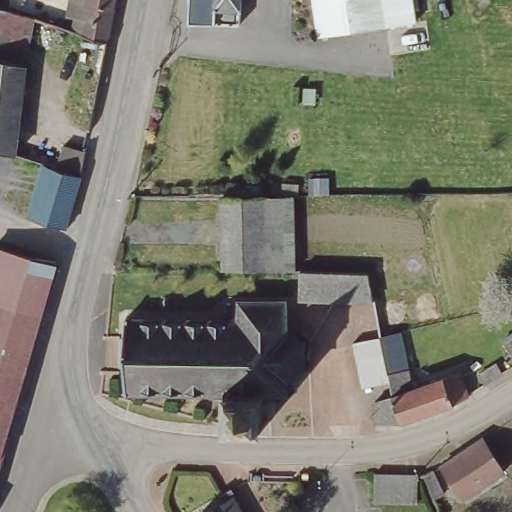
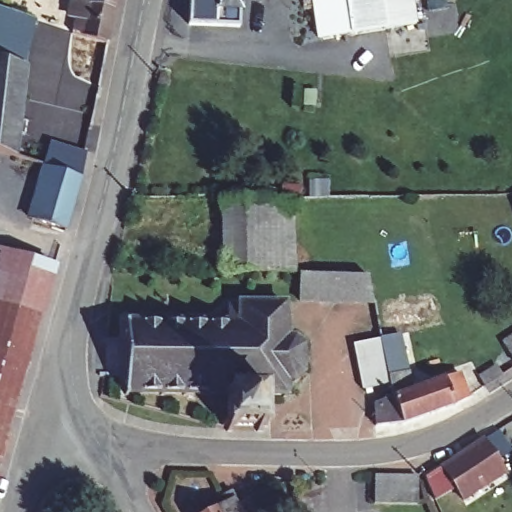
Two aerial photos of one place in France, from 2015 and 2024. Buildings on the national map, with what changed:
unchanged [(88,9),(60,2),(60,0),(117,0),(108,49),(82,41),(88,9)]
unchanged [(245,35),(194,34),(196,0),(247,0),(245,35)]
unchanged [(390,30),(355,36),(325,41),(317,0),(416,0),(420,25),(390,30)]
unchanged [(15,157),(0,152),(0,9),(32,20),(15,157)]
unchanged [(46,166),(58,170),(65,146),(86,151),(81,177),(65,230),(30,219),(46,166)]
unchanged [(305,181),(325,181),(325,200),(305,200),(305,181)]
unchanged [(283,275),(280,275),(236,274),(232,274),(220,273),(222,201),(295,200),(295,276),(283,275)]
unchanged [(60,264),(27,374),(17,411),(0,406),(0,286),(11,248),(60,264)]
unchanged [(345,306),(309,306),(300,306),(300,304),(300,276),(367,278),(374,307),(345,306)]
unchanged [(135,323),(135,326),(143,327),(143,323),(147,323),(147,327),(164,327),(164,323),(170,323),(169,327),(186,327),(186,323),(191,323),(191,327),(210,327),(210,323),(215,323),(215,327),(233,327),(233,313),(246,313),(246,308),(287,308),(288,308),(288,345),(294,345),(296,342),(300,344),(298,346),(304,349),(307,347),(310,351),(306,353),(306,375),(309,379),(305,382),(301,378),(300,380),(300,385),(294,385),(294,381),(288,381),(287,400),(282,400),(282,397),(270,397),(225,397),(215,397),(215,400),(210,400),(210,397),(191,396),(191,400),(185,400),(186,396),(166,396),(166,400),(161,400),(161,396),(147,396),(147,400),(142,399),(142,396),(135,396),(135,399),(130,399),(130,323),(135,323)]
unchanged [(510,329),(512,327),(512,332),(510,329)]
unchanged [(506,337),(512,332),(512,346),(506,337)]
unchanged [(398,351),(405,349),(414,379),(420,377),(421,385),(461,372),(470,399),(405,423),(392,381),(365,387),(362,373),(359,359),(355,343),(382,337),(393,334),(398,351)]
unchanged [(512,353),(512,357),(510,354),(512,353)]
unchanged [(475,381),(494,370),(500,381),(482,392),(475,381)]
unchanged [(403,423),(377,424),(377,402),(395,395),(403,423)]
unchanged [(230,422),(230,400),(225,400),(225,397),(270,397),(270,400),(266,400),(265,422),(269,422),(269,428),(266,427),(266,433),(260,433),(260,428),(242,428),(235,428),(235,432),(230,432),(230,427),(228,427),(225,427),(225,422),(230,422)]
unchanged [(0,467),(0,406),(17,411),(0,467)]
unchanged [(506,475),(466,500),(443,466),(484,440),(506,475)]
unchanged [(435,471),(443,493),(435,495),(428,475),(435,471)]
unchanged [(421,504),(406,503),(390,503),(378,503),(375,503),(375,474),(390,475),(405,475),(407,475),(422,475),(421,504)]
unchanged [(218,493),(227,488),(234,500),(235,503),(241,512),(207,512),(224,502),(218,493)]

